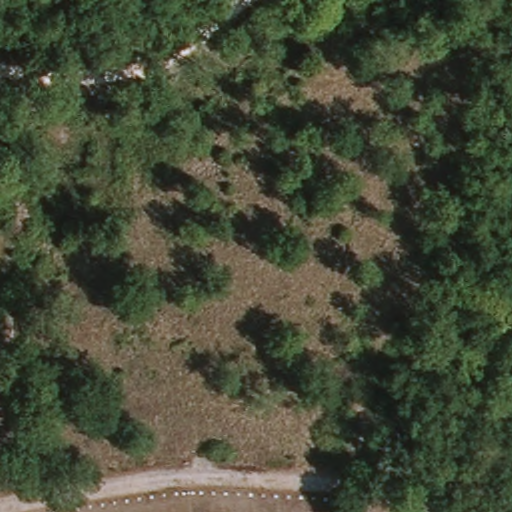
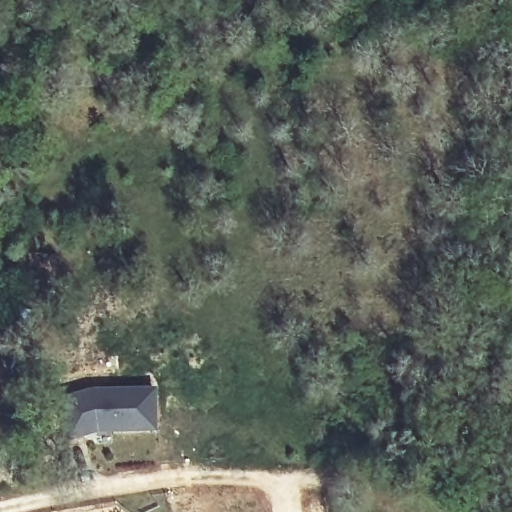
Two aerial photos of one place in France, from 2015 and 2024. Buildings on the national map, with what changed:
new [(100,430),(68,440),(55,399),(92,387),(156,388),(157,430),(100,430)]

